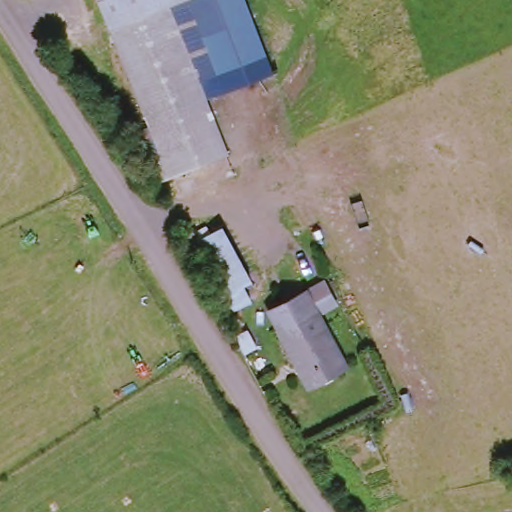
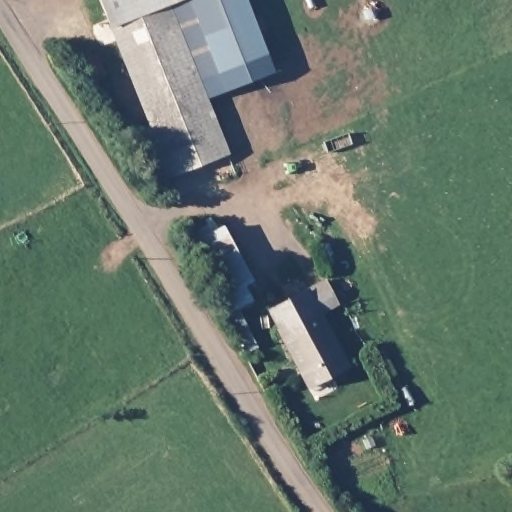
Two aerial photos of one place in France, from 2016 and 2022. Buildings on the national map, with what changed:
unchanged [(165,6),(226,157),(170,181),(167,176),(157,181),(146,152),(157,149),(97,0),(177,0),(165,6)]
unchanged [(184,0),(241,0),(259,50),(252,52),(210,71),(184,0)]
unchanged [(239,284),(253,308),(230,323),(190,249),(222,231),(249,278),(239,284)]
unchanged [(303,387),(263,311),(301,292),(341,367),(303,387)]

